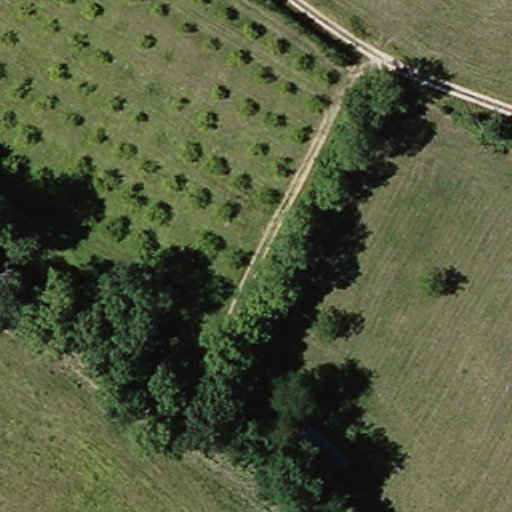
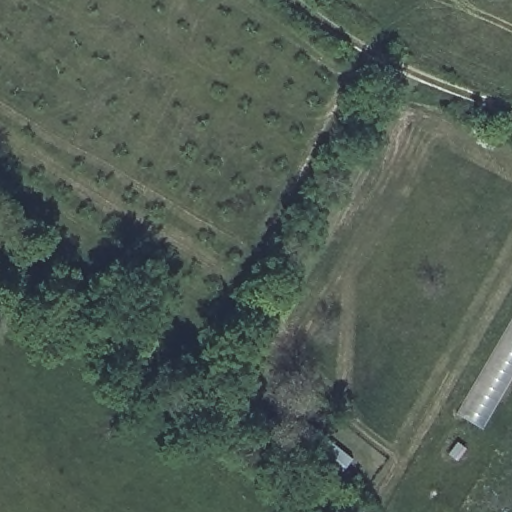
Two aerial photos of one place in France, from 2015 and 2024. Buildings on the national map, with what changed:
new [(456,416),(512,320),(512,378),(482,428),(456,416)]

